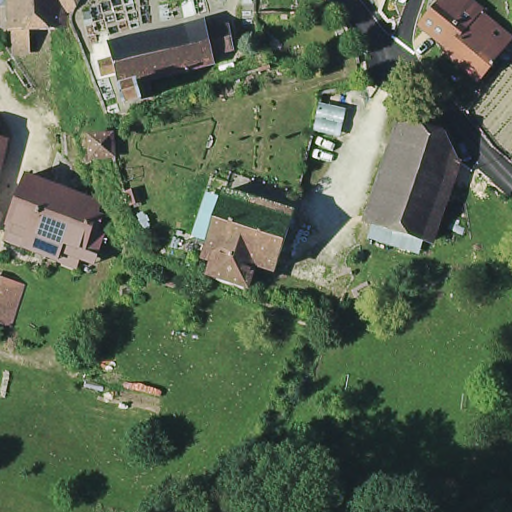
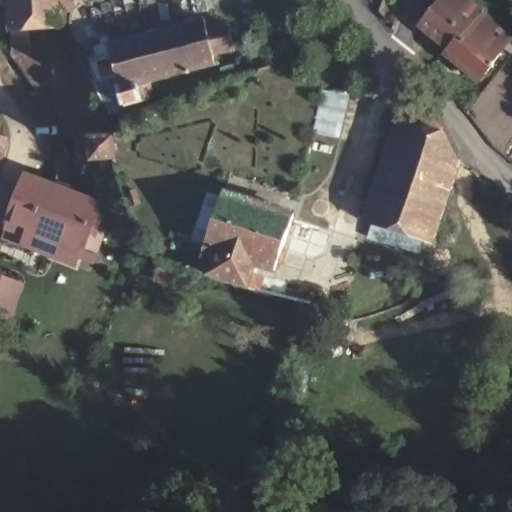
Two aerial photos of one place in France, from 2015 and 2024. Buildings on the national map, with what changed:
unchanged [(28,50),(11,51),(10,31),(7,0),(59,0),(62,26),(27,29),(28,50)]
unchanged [(441,41),(414,13),(429,0),(451,0),(466,17),(459,24),(441,41)]
unchanged [(475,72),(472,71),(471,74),(436,46),(441,41),(459,24),(466,32),(481,15),(499,31),(485,51),(487,53),(476,68),(477,69),(475,72)]
unchanged [(145,82),(150,99),(121,107),(114,84),(105,46),(201,20),(204,30),(224,25),(230,50),(214,54),(215,58),(209,59),(210,64),(145,82)]
unchanged [(380,159),(393,116),(400,92),(435,125),(437,129),(448,154),(433,196),(374,178),(380,159)]
unchanged [(114,137),(117,159),(94,160),(92,138),(114,137)]
unchanged [(0,229),(4,218),(21,170),(99,199),(82,247),(64,240),(58,254),(0,234),(0,229)]
unchanged [(419,238),(359,219),(374,178),(433,196),(419,238)]
unchanged [(205,275),(210,261),(200,257),(221,192),(256,203),(230,283),(205,275)]
unchanged [(230,283),(256,203),(290,214),(271,270),(250,264),(246,288),(230,283)]
unchanged [(24,289),(22,294),(11,327),(0,324),(0,270),(27,280),(24,289)]

